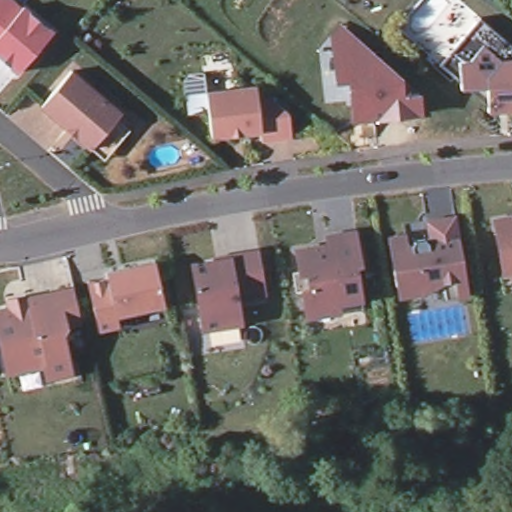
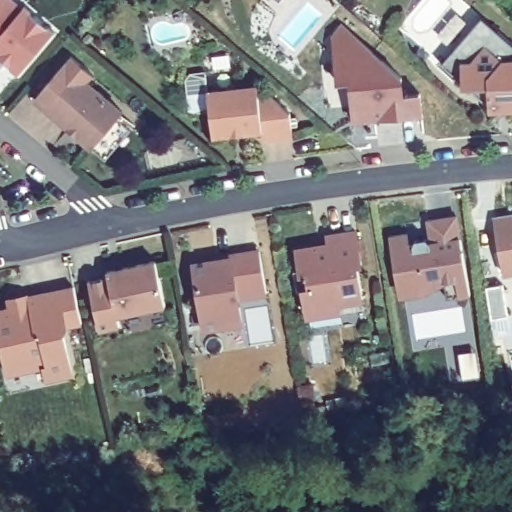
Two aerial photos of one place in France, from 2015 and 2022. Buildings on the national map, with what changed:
unchanged [(13,0),(22,7),(23,6),(24,5),(53,30),(44,41),(18,71),(0,56),(0,0),(13,0)]
unchanged [(512,43),(512,108),(503,109),(503,111),(492,111),(491,106),(480,97),(470,88),(465,88),(464,83),(443,65),(483,19),(512,43)]
unchanged [(368,94),(347,95),(345,77),(333,78),(330,51),(337,44),(348,30),(352,34),(396,72),(398,90),(415,89),(417,115),(385,117),(370,119),(368,94)]
unchanged [(112,165),(111,164),(99,154),(36,100),(60,73),(66,65),(129,118),(125,124),(137,135),(112,165)]
unchanged [(235,90),(257,87),(258,97),(270,95),(290,114),(292,137),(267,140),(262,141),(261,131),(222,136),(212,137),(210,119),(207,93),(235,90)]
unchanged [(512,273),(503,275),(500,260),(500,255),(493,220),(512,217),(512,273)]
unchanged [(365,297),(340,303),(341,315),(303,320),(291,247),(321,242),(320,233),(355,226),(365,297)]
unchanged [(412,305),(395,295),(391,266),(388,253),(393,246),(406,245),(408,257),(411,256),(414,251),(425,250),(426,251),(429,249),(426,231),(441,229),(455,226),(462,269),(464,277),(465,283),(468,306),(445,310),(443,295),(443,293),(432,295),(421,296),(422,300),(422,305),(412,306),(412,305)]
unchanged [(216,259),(230,256),(230,254),(260,249),(266,291),(238,296),(242,321),(206,327),(203,327),(202,320),(193,263),(216,259)]
unchanged [(108,276),(107,271),(155,261),(165,304),(117,315),(119,325),(100,329),(88,281),(108,276)]
unchanged [(0,341),(0,310),(10,308),(7,298),(27,295),(27,296),(35,295),(59,290),(73,286),(81,322),(67,325),(63,331),(72,373),(65,375),(46,379),(43,365),(20,371),(7,374),(3,354),(0,341)]

